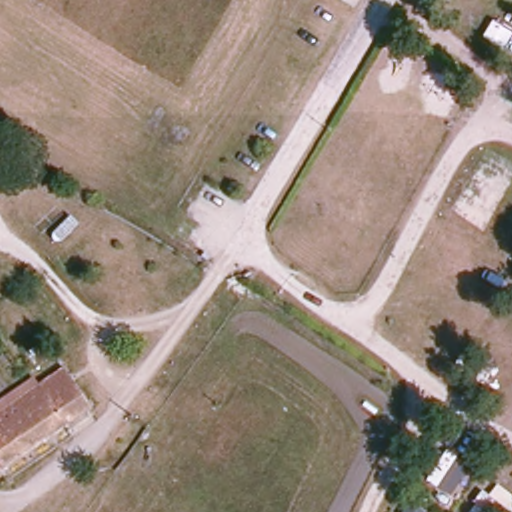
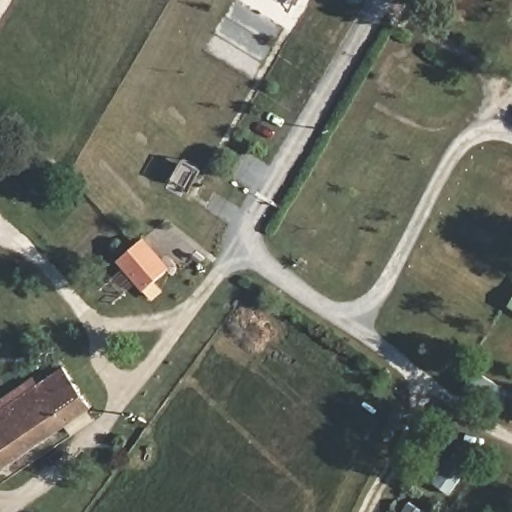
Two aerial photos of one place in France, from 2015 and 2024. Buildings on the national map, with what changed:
new [(171,268),(144,292),(117,261),(145,237),(171,268)]
unchanged [(62,368),(92,406),(10,468),(0,457),(0,407),(57,361),(62,368)]
unchanged [(458,456),(456,461),(471,470),(453,497),(427,480),(447,452),(458,456)]
unchanged [(507,512),(503,509),(502,512),(483,512),(472,503),(482,490),(489,494),(497,484),(512,495),(512,512),(507,512)]
unchanged [(425,512),(404,512),(410,503),(425,512)]

